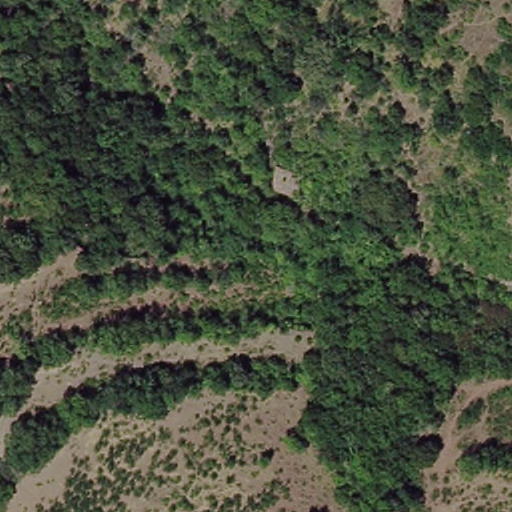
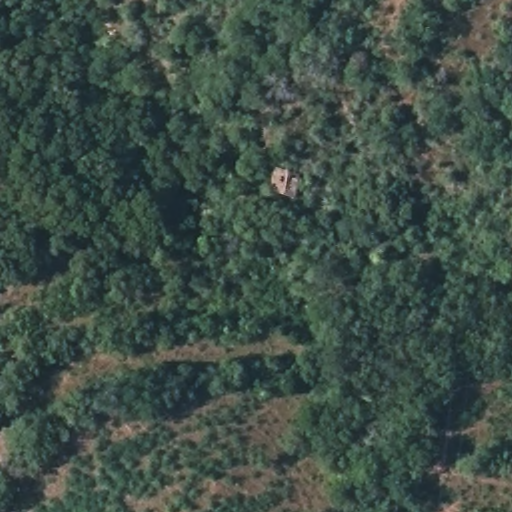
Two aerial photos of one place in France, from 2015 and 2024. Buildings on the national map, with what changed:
unchanged [(278,161),(301,164),(299,189),(273,182),(278,161)]

